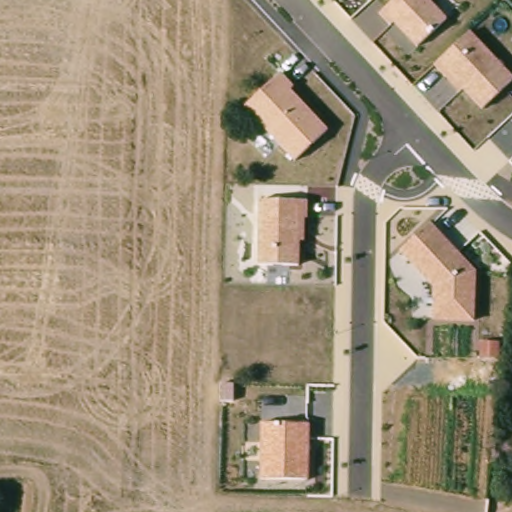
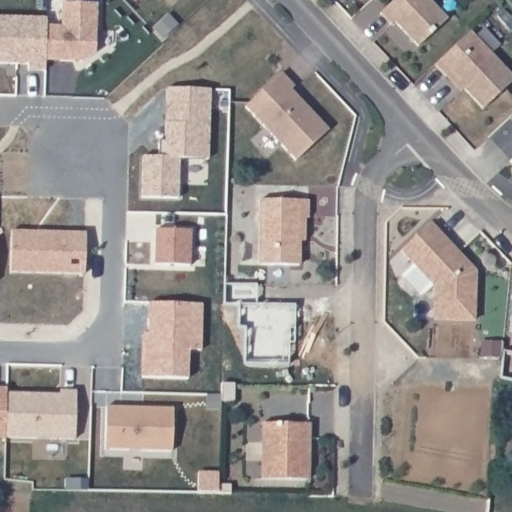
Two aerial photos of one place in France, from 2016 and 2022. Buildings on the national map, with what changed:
unchanged [(391,25),(381,13),(394,0),(431,0),(447,19),(418,46),(396,21),(391,25)]
new [(46,27),(60,27),(61,4),(97,4),(96,54),(84,63),(45,62),(46,27)]
new [(46,27),(45,62),(45,71),(28,71),(28,65),(0,64),(0,17),(46,18),(46,27)]
unchanged [(464,88),(459,92),(434,65),(471,29),(512,75),(512,79),(482,108),(464,88)]
unchanged [(245,106),(283,73),(295,86),(290,90),(325,131),(295,161),(245,106)]
new [(165,141),(166,89),(209,90),(208,160),(179,159),(178,199),(141,198),(143,156),(158,156),(159,141),(165,141)]
unchanged [(260,200),(299,201),(309,201),(308,240),(300,240),(299,264),(259,263),(260,200)]
unchanged [(434,288),(399,249),(432,221),(476,270),(474,319),(433,321),(434,288)]
new [(155,230),(192,232),(190,268),(154,264),(155,230)]
new [(11,231),(85,233),(84,274),(10,272),(11,231)]
new [(149,335),(150,304),(201,305),(199,349),(187,348),(187,381),(141,379),(143,335),(149,335)]
new [(6,393),(4,438),(0,437),(0,389),(6,389),(6,393)]
new [(37,394),(46,394),(55,394),(55,390),(76,391),(74,439),(4,438),(6,393),(37,394)]
new [(105,407),(173,409),(172,451),(104,449),(105,407)]
unchanged [(263,422),(309,423),(309,478),(263,478),(263,422)]

